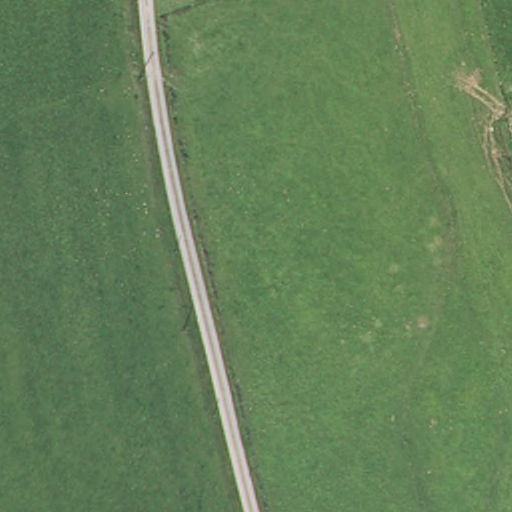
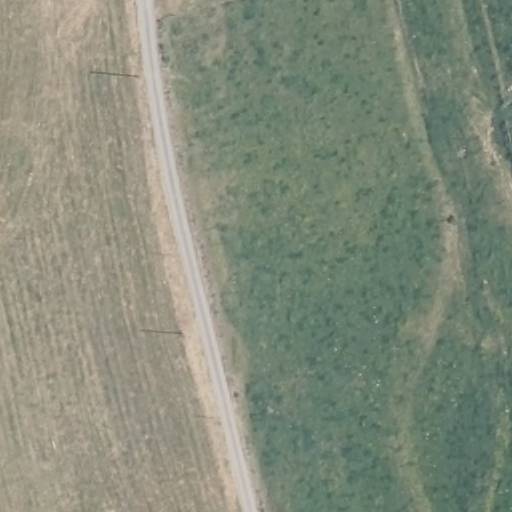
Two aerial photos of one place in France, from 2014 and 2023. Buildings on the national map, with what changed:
[]

